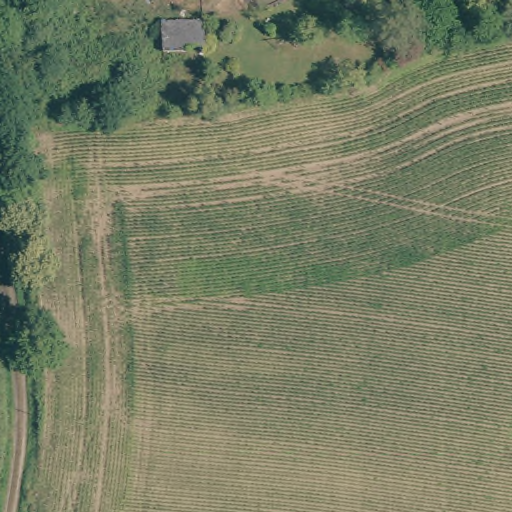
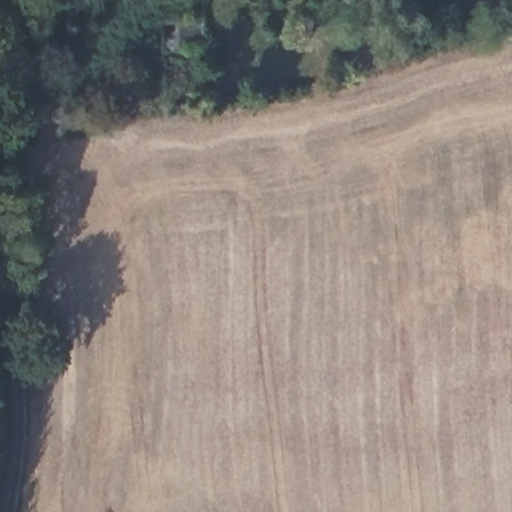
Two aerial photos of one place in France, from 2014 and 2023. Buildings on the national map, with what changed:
unchanged [(206,42),(191,43),(190,48),(166,48),(164,18),(205,17),(206,42)]

